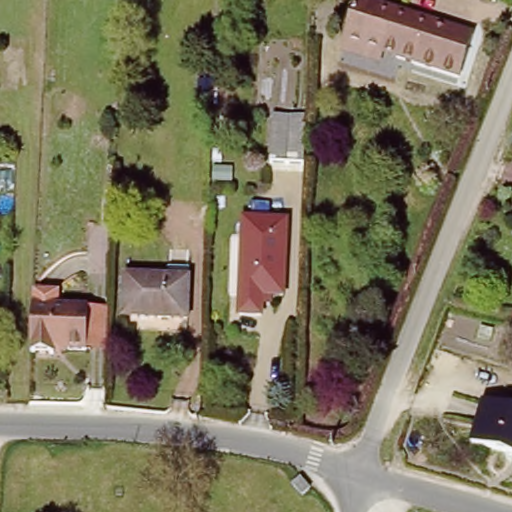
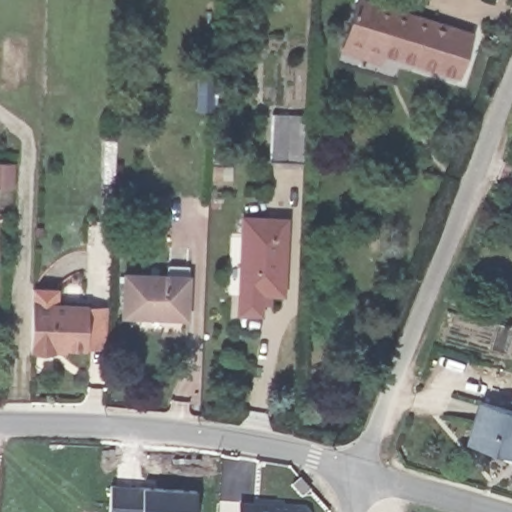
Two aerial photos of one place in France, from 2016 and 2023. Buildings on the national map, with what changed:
unchanged [(342,42),(353,1),(469,34),(458,75),(382,55),(379,63),(338,51),(342,42)]
unchanged [(301,164),(267,162),(270,117),(303,118),(301,164)]
unchanged [(252,311),(242,311),(243,214),(257,215),(252,311)]
unchanged [(291,217),(289,289),(273,289),(272,300),(263,300),(262,311),(252,311),(257,215),(291,217)]
unchanged [(190,317),(122,318),(122,278),(190,278),(190,317)]
unchanged [(88,306),(87,348),(52,346),(50,352),(27,351),(30,304),(88,306)]
unchanged [(485,401),(512,413),(512,460),(466,442),(485,401)]
new [(142,487),(195,490),(194,512),(108,512),(110,484),(142,487)]
new [(276,503),(276,507),(303,508),(307,512),(237,512),(237,501),(276,503)]

